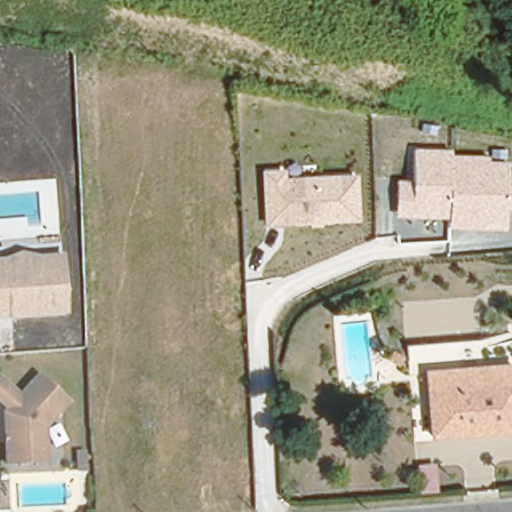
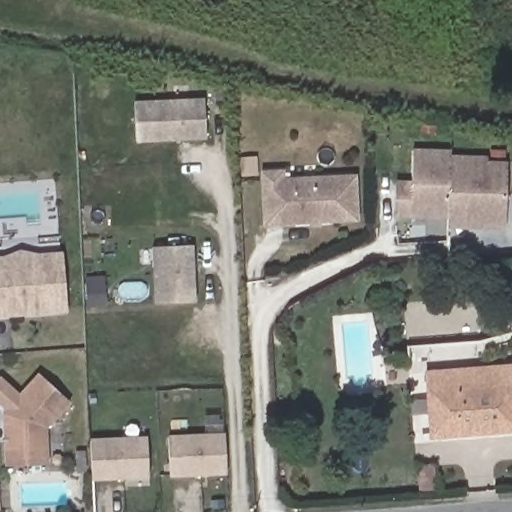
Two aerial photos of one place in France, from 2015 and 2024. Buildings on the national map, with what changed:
new [(135,142),(132,100),(204,97),(206,139),(135,142)]
unchanged [(506,228),(445,227),(445,219),(395,215),(395,180),(410,181),(411,149),(451,150),(451,154),(490,156),(490,161),(509,161),(506,228)]
unchanged [(361,217),(272,221),(267,169),(283,168),(285,182),(359,178),(361,217)]
new [(155,304),(151,247),(193,244),(195,302),(155,304)]
unchanged [(65,312),(0,315),(0,255),(62,250),(65,312)]
unchanged [(512,428),(435,432),(430,369),(512,364),(512,428)]
unchanged [(4,463),(1,412),(5,408),(0,404),(0,381),(15,394),(35,373),(65,399),(41,425),(44,460),(4,463)]
new [(227,437),(229,474),(172,477),(170,439),(227,437)]
new [(150,440),(151,477),(94,480),(92,443),(150,440)]

